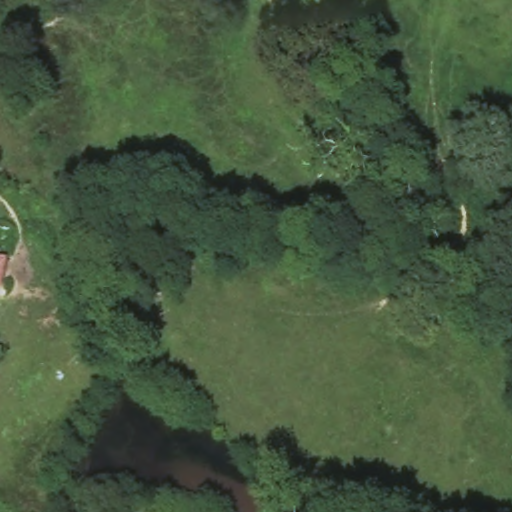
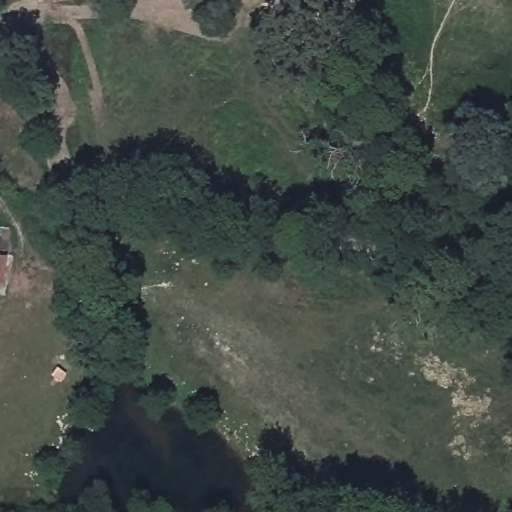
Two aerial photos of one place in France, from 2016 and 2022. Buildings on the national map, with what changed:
unchanged [(0,290),(0,252),(8,255),(5,276),(3,290),(0,290)]

